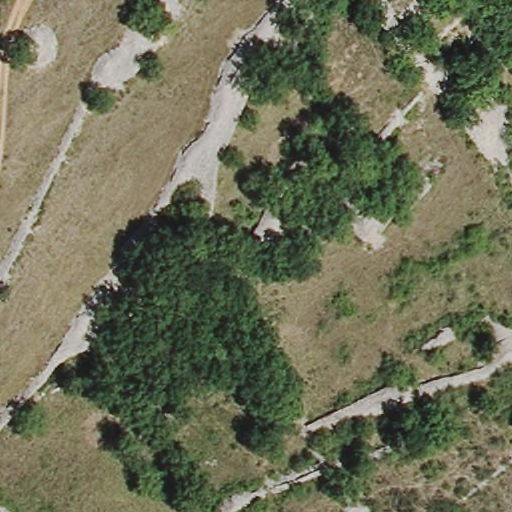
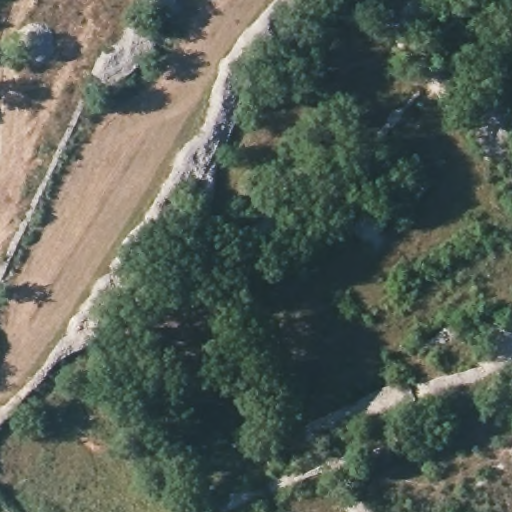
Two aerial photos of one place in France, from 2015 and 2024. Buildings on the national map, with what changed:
[]

